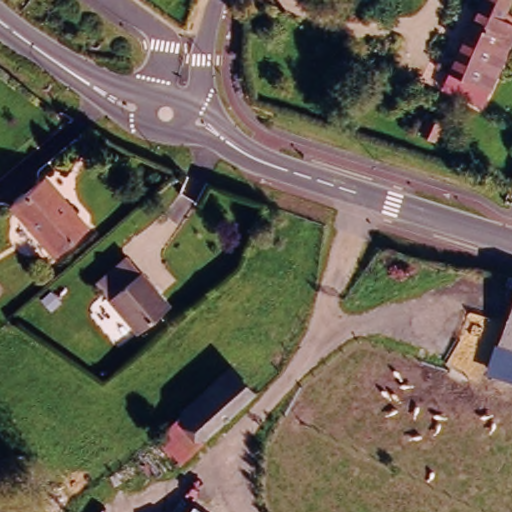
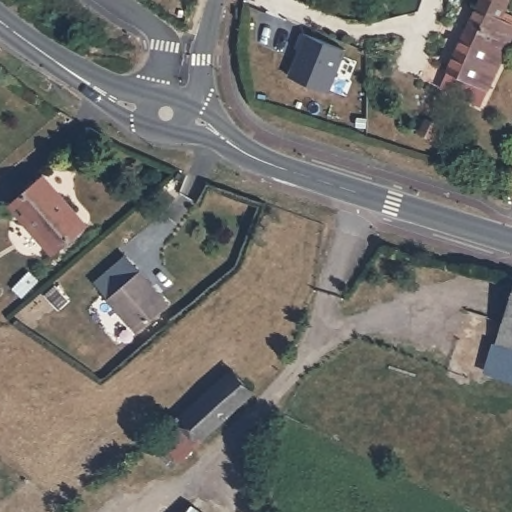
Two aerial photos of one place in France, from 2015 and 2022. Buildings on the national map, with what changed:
unchanged [(512,31),(484,107),(442,93),(474,0),(500,0),(493,22),(512,29),(512,31)]
new [(289,75),(299,50),(296,48),(304,34),(346,50),(331,91),(289,75)]
unchanged [(436,111),(428,130),(414,125),(421,107),(436,111)]
unchanged [(43,179),(86,222),(55,251),(10,209),(43,179)]
unchanged [(123,252),(168,297),(140,327),(93,282),(123,252)]
unchanged [(512,380),(486,372),(512,291),(512,380)]
unchanged [(231,360),(255,381),(214,430),(189,411),(231,360)]
unchanged [(204,512),(188,512),(193,504),(204,512)]

